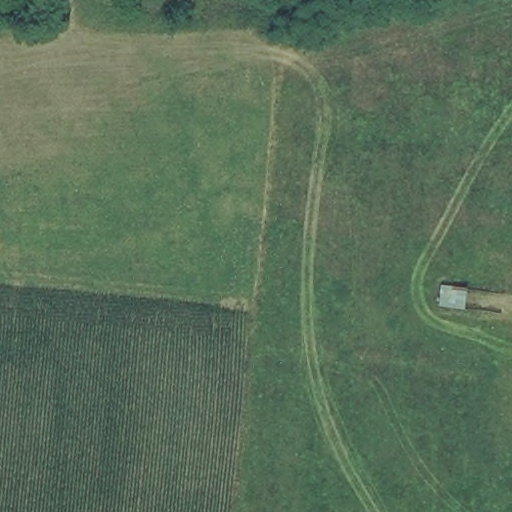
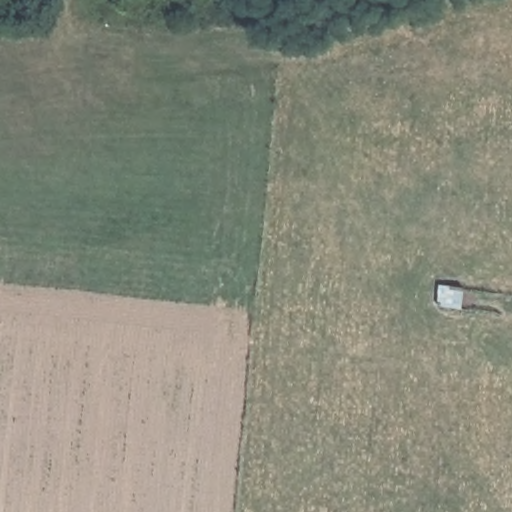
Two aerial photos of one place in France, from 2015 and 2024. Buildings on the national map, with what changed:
unchanged [(471,288),(470,308),(443,308),(443,287),(471,288)]

